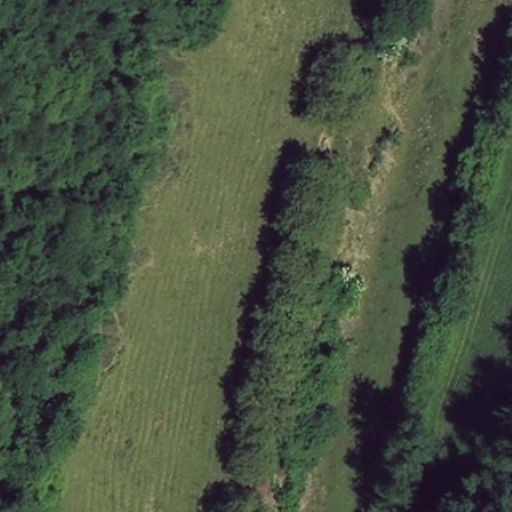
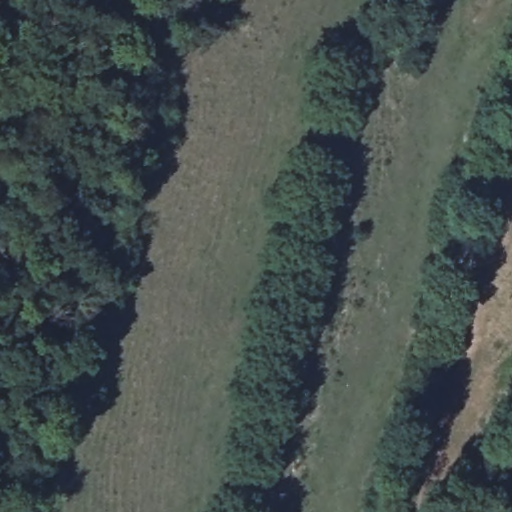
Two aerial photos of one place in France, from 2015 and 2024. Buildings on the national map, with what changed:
unchanged [(273,472),(267,495),(247,493),(251,469),(273,472)]

